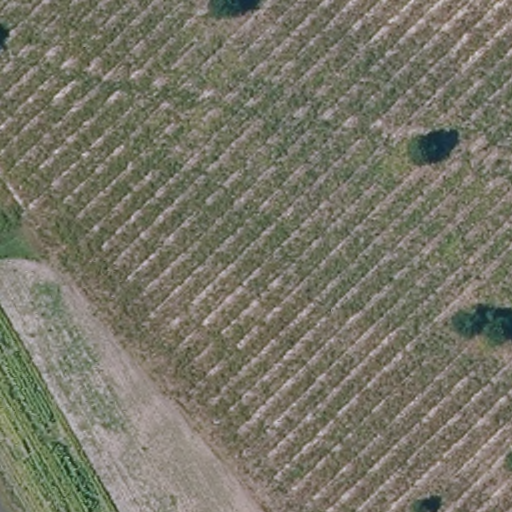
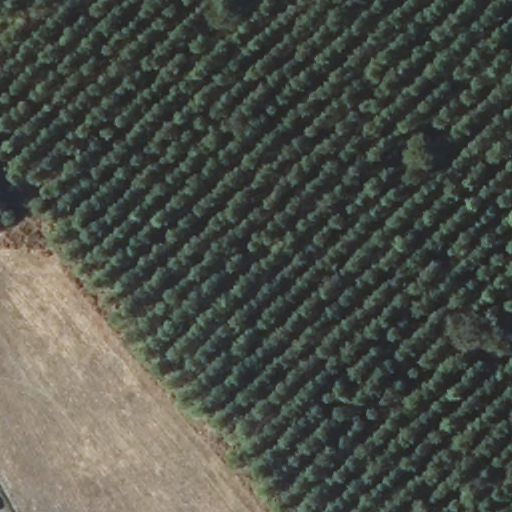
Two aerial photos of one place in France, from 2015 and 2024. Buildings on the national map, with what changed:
[]

